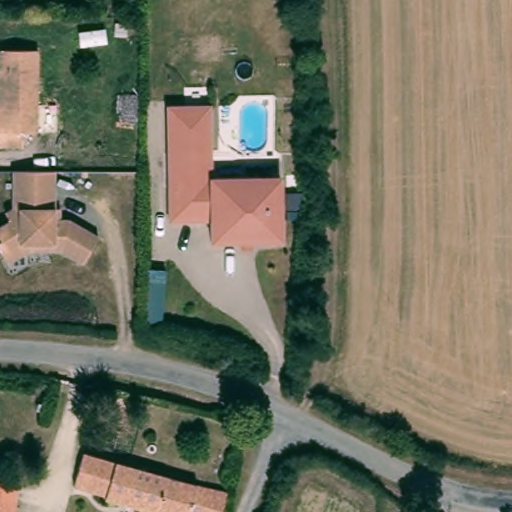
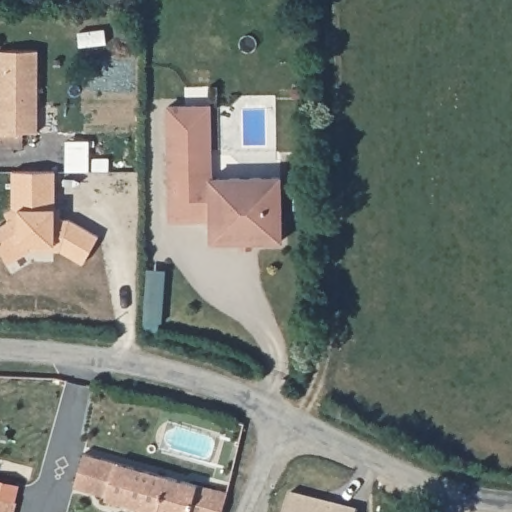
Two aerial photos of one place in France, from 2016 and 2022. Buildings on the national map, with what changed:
unchanged [(4,146),(4,131),(0,131),(0,106),(3,106),(2,49),(42,49),(43,131),(29,131),(29,146),(4,146)]
unchanged [(217,99),(217,174),(286,174),(286,239),(216,239),(216,215),(175,215),(175,99),(217,99)]
unchanged [(53,172),(55,209),(60,209),(60,220),(69,220),(97,235),(84,263),(57,250),(30,250),(5,262),(0,253),(0,226),(8,223),(3,212),(10,209),(9,172),(53,172)]
unchanged [(79,449),(224,493),(219,512),(161,512),(68,484),(79,449)]
unchanged [(23,492),(18,512),(20,512),(0,512),(0,486),(23,492)]
new [(291,492),(357,509),(356,512),(286,512),(291,492)]

